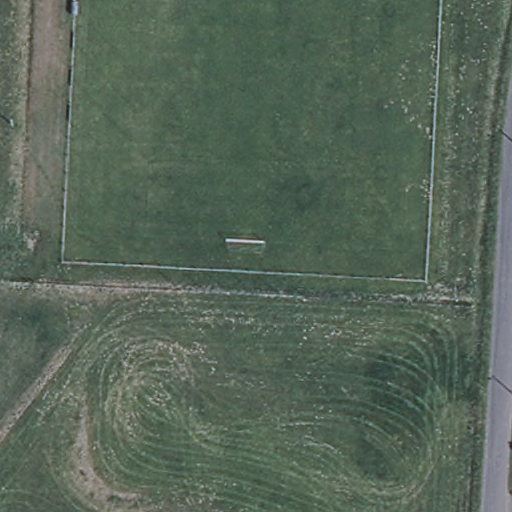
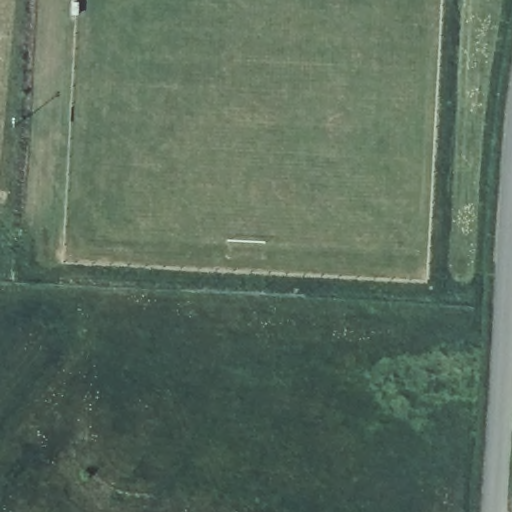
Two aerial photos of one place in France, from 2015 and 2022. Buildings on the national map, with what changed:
[]

